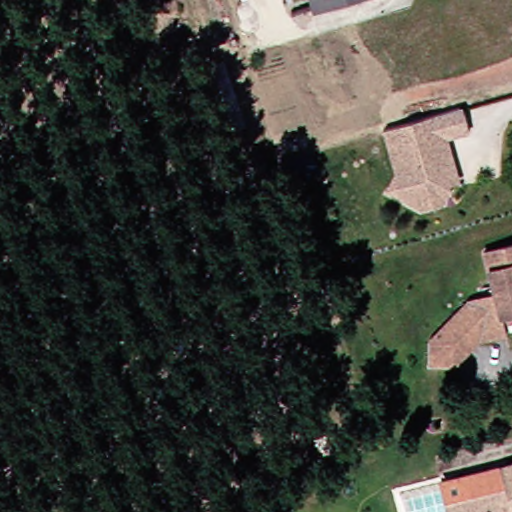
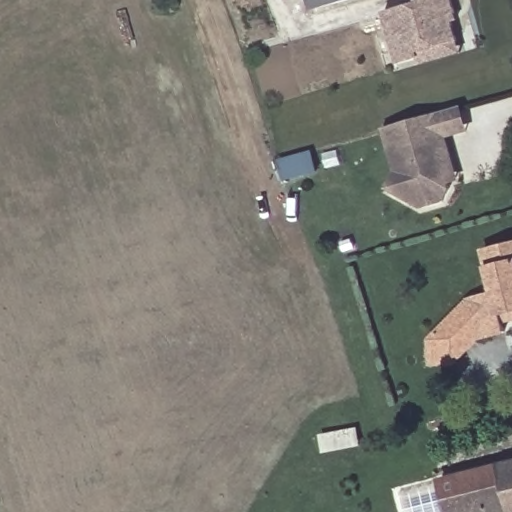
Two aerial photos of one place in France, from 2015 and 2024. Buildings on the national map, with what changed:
unchanged [(318,0),(351,0),(322,11),(318,0)]
new [(417,0),(452,0),(458,22),(453,24),(461,51),(421,65),(400,69),(382,11),(417,1),(417,0)]
unchanged [(470,129),(449,136),(461,175),(451,178),(431,115),(452,109),(462,105),(470,129)]
unchanged [(451,178),(453,187),(447,199),(426,206),(391,186),(398,172),(385,128),(394,126),(431,115),(451,178)]
unchanged [(448,331),(476,298),(493,292),(483,252),(512,244),(512,309),(500,312),(504,331),(489,334),(475,352),(465,362),(440,366),(437,344),(448,331)]
unchanged [(450,483),(512,467),(512,512),(457,512),(450,483)]
unchanged [(457,512),(412,512),(406,493),(450,483),(457,512)]

